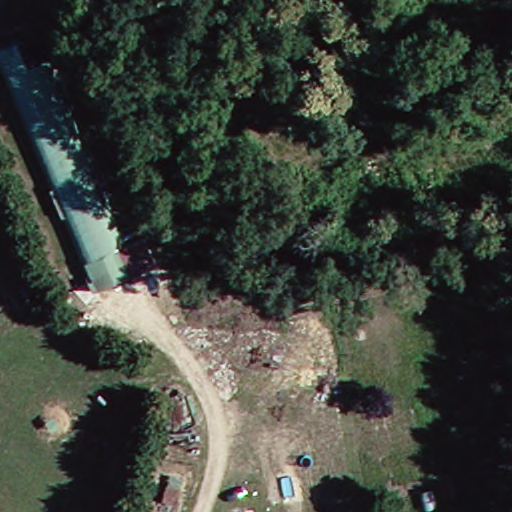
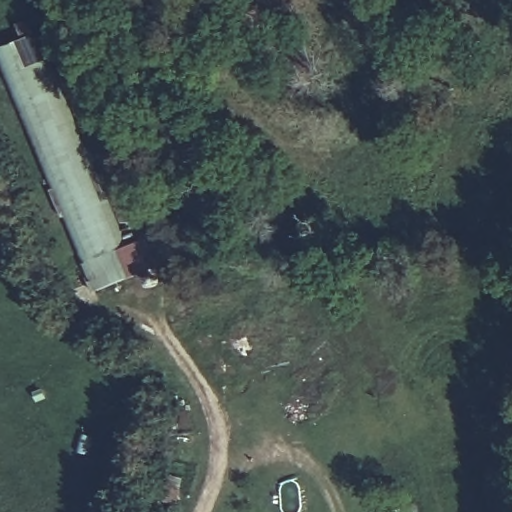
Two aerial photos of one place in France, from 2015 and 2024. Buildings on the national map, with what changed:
unchanged [(0,48),(29,33),(130,238),(100,252),(0,48)]
unchanged [(100,252),(86,259),(0,85),(0,48),(100,252)]

